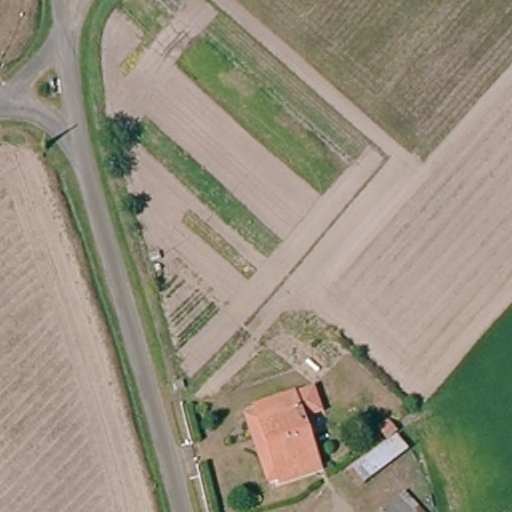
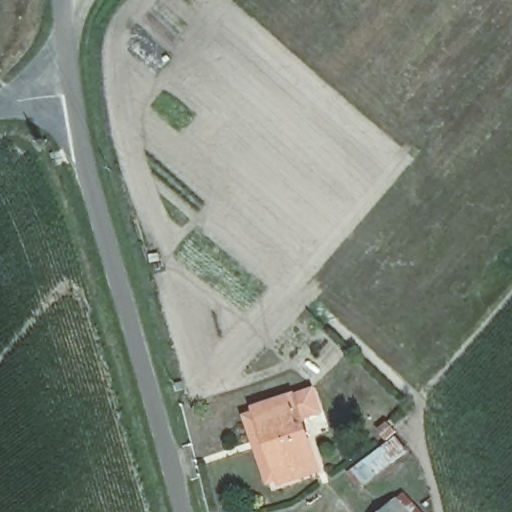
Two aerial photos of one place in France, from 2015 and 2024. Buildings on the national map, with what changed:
unchanged [(245,414),(255,410),(311,391),(318,412),(300,419),(317,470),(279,483),(269,486),(245,414)]
unchanged [(396,438),(406,451),(360,487),(349,473),(396,438)]
unchanged [(400,496),(418,512),(386,512),(392,505),(400,496)]

